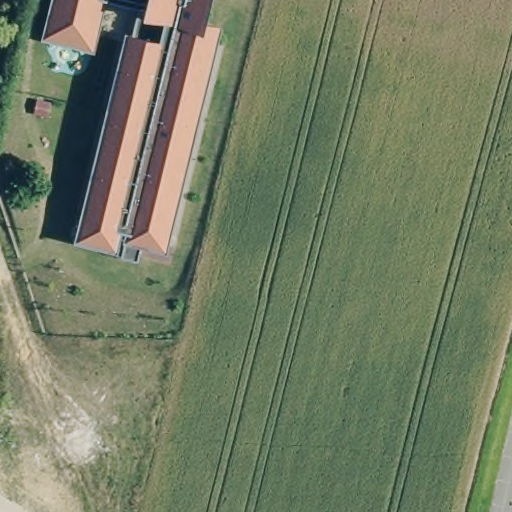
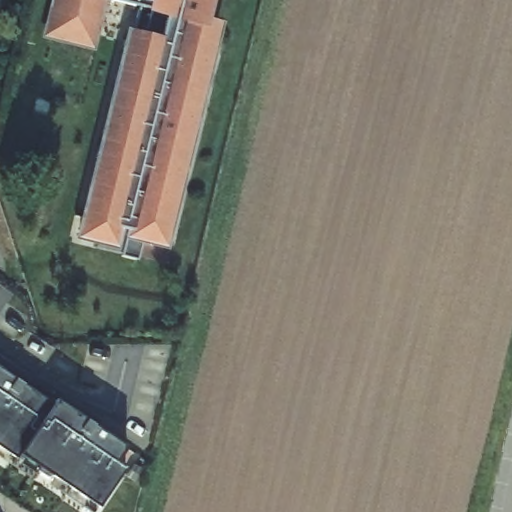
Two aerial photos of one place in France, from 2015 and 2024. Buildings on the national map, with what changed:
unchanged [(42,38),(52,0),(109,0),(97,52),(42,38)]
unchanged [(223,25),(170,243),(118,231),(115,246),(85,238),(134,37),(140,7),(114,0),(211,0),(207,19),(223,25)]
new [(51,402),(54,397),(125,443),(116,457),(125,463),(97,506),(17,452),(15,457),(0,447),(0,368),(51,402)]

